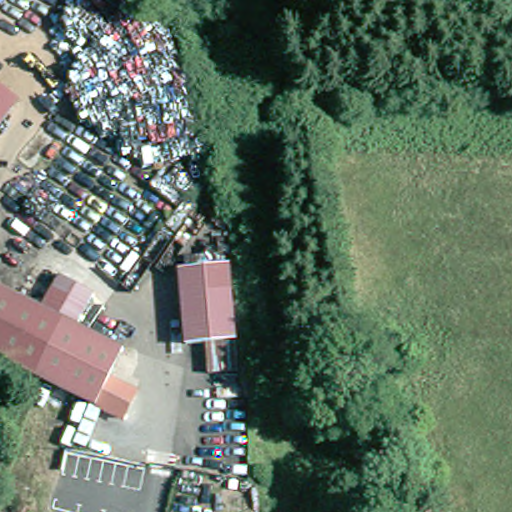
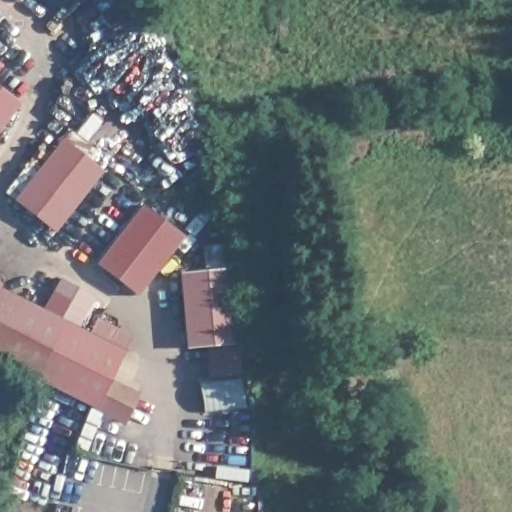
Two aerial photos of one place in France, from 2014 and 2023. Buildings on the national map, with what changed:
unchanged [(0,129),(0,90),(20,104),(0,129)]
new [(62,139),(100,172),(52,230),(13,198),(62,139)]
new [(145,206),(184,238),(136,297),(97,265),(145,206)]
unchanged [(233,268),(239,345),(225,346),(229,375),(207,377),(202,347),(185,347),(177,269),(233,268)]
unchanged [(59,277),(94,294),(80,331),(65,324),(60,322),(50,316),(42,312),(59,277)]
unchanged [(0,287),(0,282),(3,284),(0,287)]
unchanged [(35,377),(0,359),(0,291),(65,324),(35,377)]
unchanged [(65,324),(127,355),(116,379),(137,391),(123,416),(119,423),(98,411),(35,377),(65,324)]

